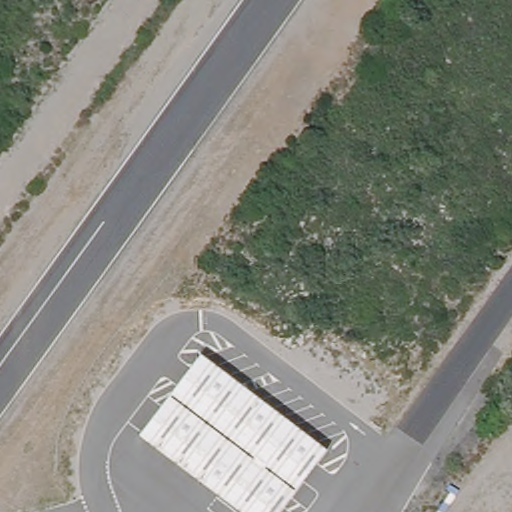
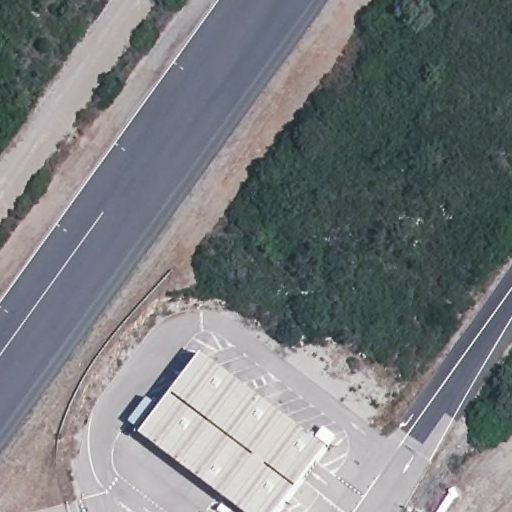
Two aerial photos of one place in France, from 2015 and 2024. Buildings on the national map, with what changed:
unchanged [(282,512),(241,512),(140,436),(203,354),(330,448),(282,512)]

